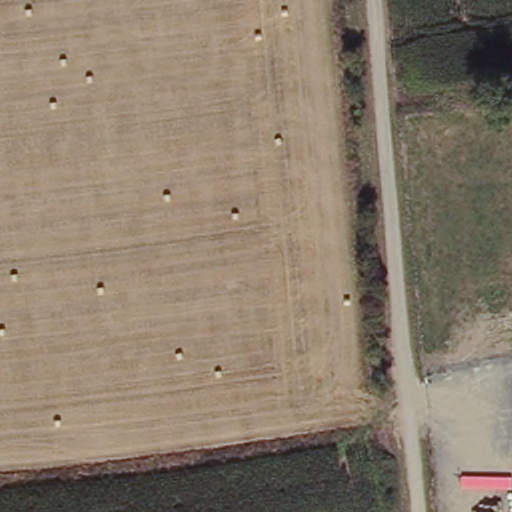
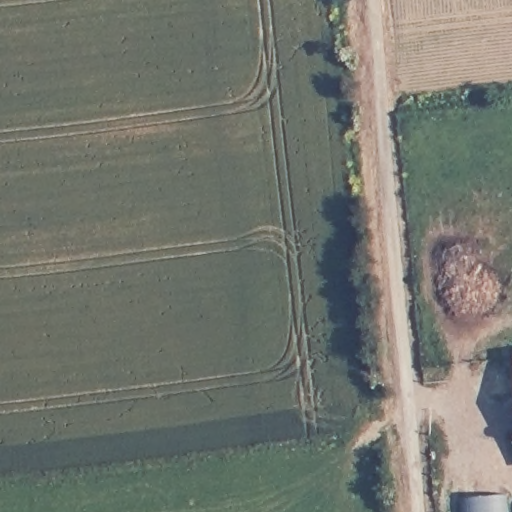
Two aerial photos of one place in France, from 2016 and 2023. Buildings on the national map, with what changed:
new [(512,495),(512,512),(459,512),(457,498),(512,495)]

